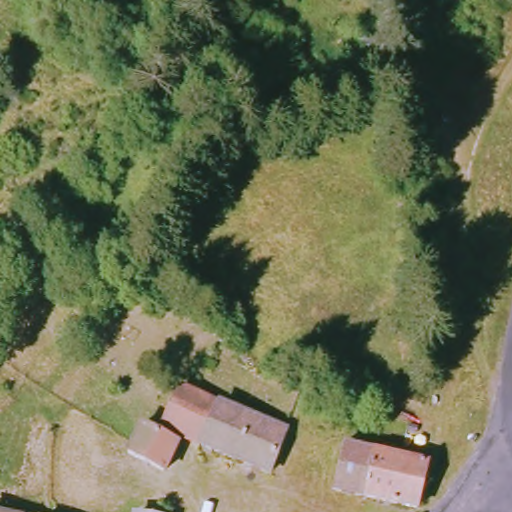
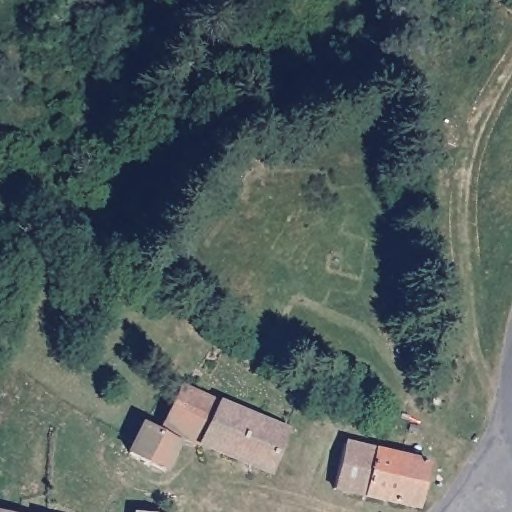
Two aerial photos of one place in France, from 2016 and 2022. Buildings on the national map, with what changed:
unchanged [(176,389),(215,406),(196,448),(158,433),(176,389)]
unchanged [(281,433),(262,475),(196,448),(215,406),(281,433)]
unchanged [(134,431),(154,441),(169,449),(155,476),(121,457),(124,450),(134,431)]
unchanged [(342,442),(373,449),(363,495),(330,490),(342,442)]
unchanged [(393,500),(363,495),(373,449),(402,455),(393,500)]
unchanged [(393,500),(402,455),(425,460),(417,504),(393,500)]

